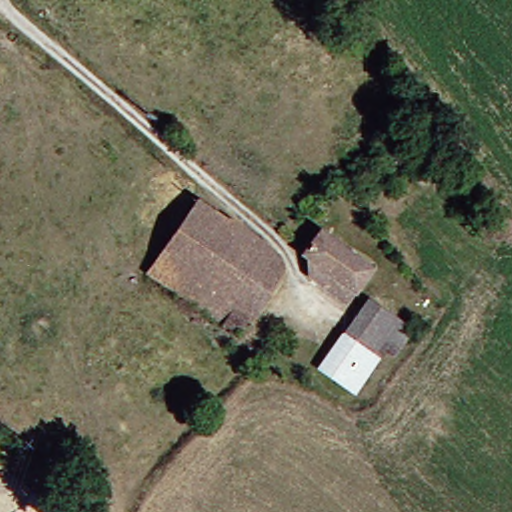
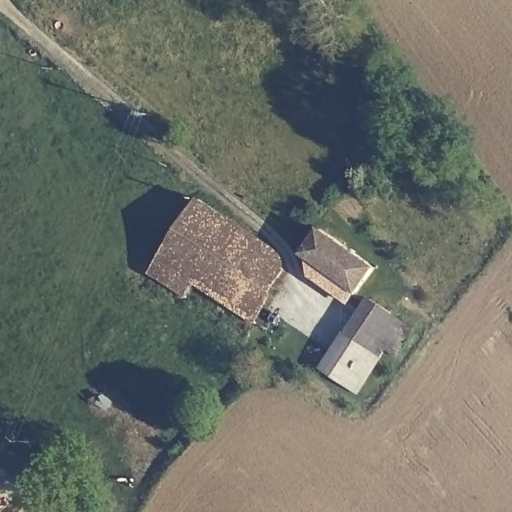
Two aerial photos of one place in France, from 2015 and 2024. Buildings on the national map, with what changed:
unchanged [(263,301),(250,320),(160,258),(199,201),(277,253),(284,270),(263,301)]
unchanged [(364,271),(339,306),(294,273),(292,253),(308,231),(364,271)]
unchanged [(250,320),(237,336),(149,274),(160,258),(250,320)]
unchanged [(359,301),(403,331),(384,357),(374,349),(368,360),(335,335),(359,301)]
unchanged [(368,360),(341,394),(310,371),(335,335),(368,360)]

